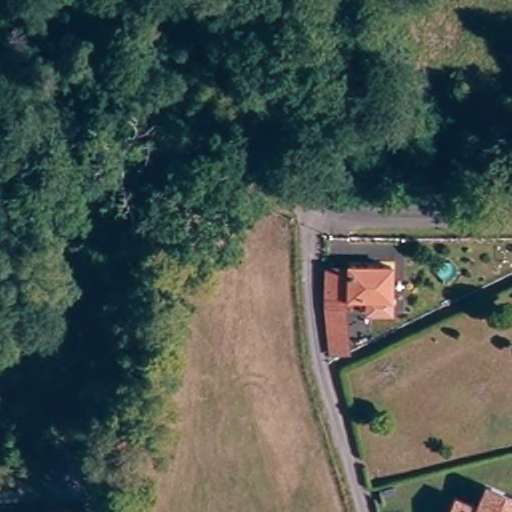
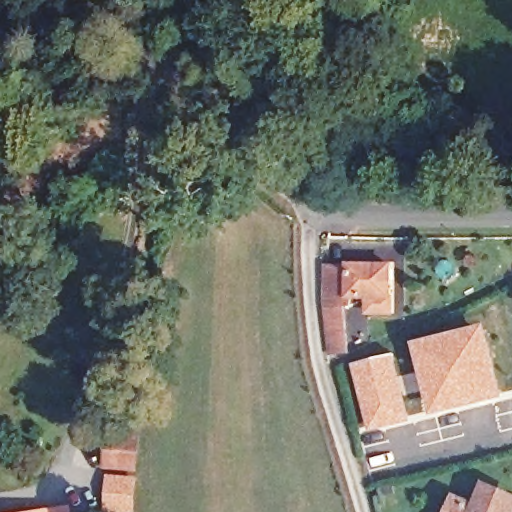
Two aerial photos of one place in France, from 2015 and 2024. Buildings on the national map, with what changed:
unchanged [(331,349),(326,301),(327,264),(348,264),(348,262),(390,262),(390,308),(367,308),(367,294),(350,294),(350,301),(343,301),(348,347),(331,349)]
new [(485,324),(503,398),(430,416),(411,342),(485,324)]
new [(394,353),(410,421),(366,431),(350,364),(394,353)]
new [(106,439),(107,434),(122,435),(138,436),(136,469),(120,467),(105,466),(105,461),(106,439)]
unchanged [(475,504),(485,481),(512,494),(512,512),(447,512),(455,495),(475,504)]

